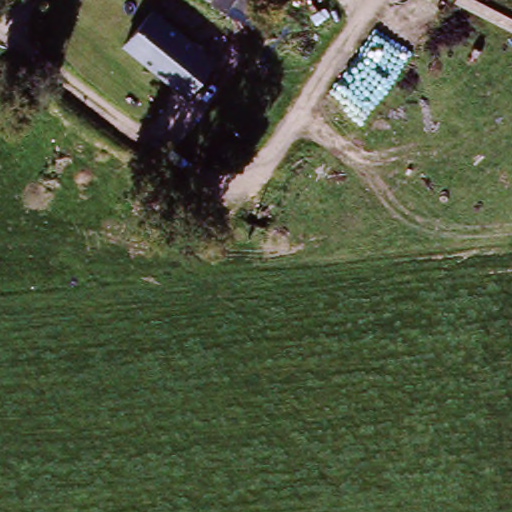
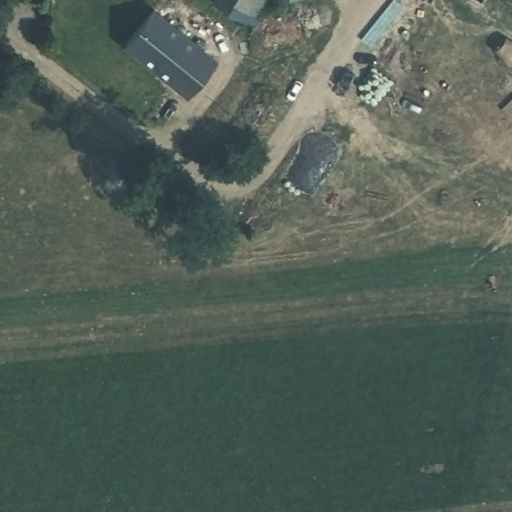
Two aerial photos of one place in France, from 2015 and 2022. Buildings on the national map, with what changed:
unchanged [(251,22),(221,0),(267,0),(251,22)]
unchanged [(121,44),(152,10),(215,67),(184,99),(121,44)]

